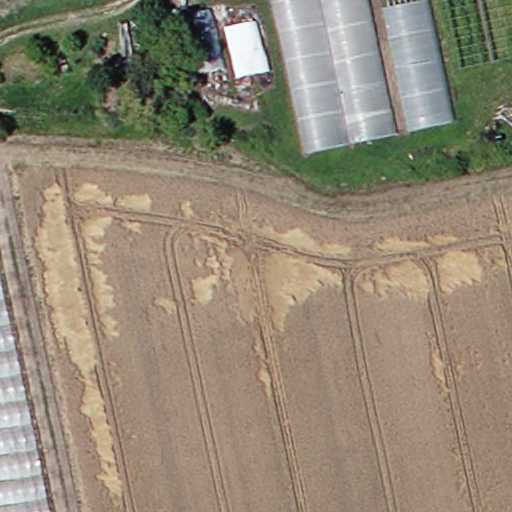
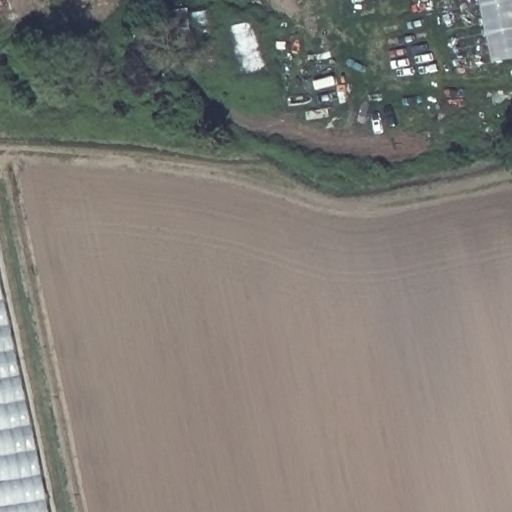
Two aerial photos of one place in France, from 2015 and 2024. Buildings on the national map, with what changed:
demolished [(401,134),(314,151),(282,0),(373,0),(401,134)]
demolished [(390,0),(433,0),(459,122),(417,129),(390,0)]
new [(512,59),(458,69),(444,0),(512,0),(512,59)]
unchanged [(48,512),(0,512),(0,279),(48,512)]

